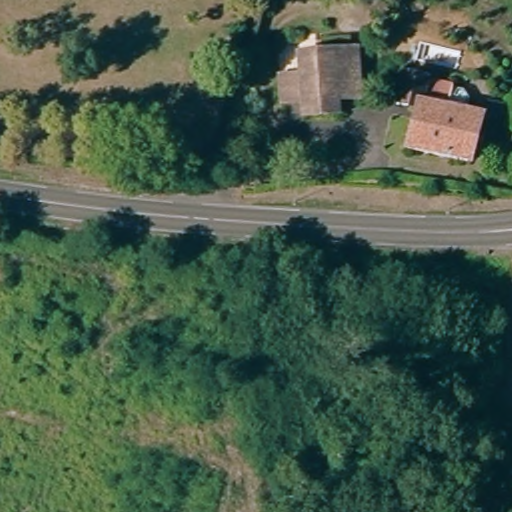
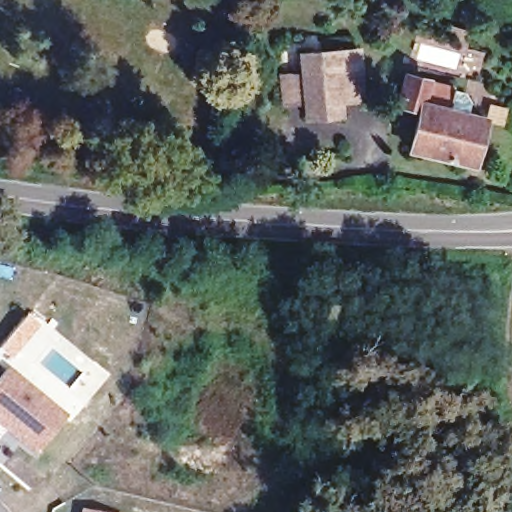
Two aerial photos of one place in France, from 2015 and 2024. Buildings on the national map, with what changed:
unchanged [(308,100),(288,101),(285,74),(305,72),(304,52),(362,48),(367,95),(344,97),(345,112),(310,114),(308,100)]
unchanged [(418,107),(397,102),(405,72),(427,77),(427,80),(449,85),(448,89),(461,92),(466,100),(464,109),(483,114),(470,162),(408,147),(418,107)]
new [(0,377),(9,366),(66,416),(35,453),(0,426),(0,377)]
new [(91,512),(80,512),(81,510),(91,512)]

